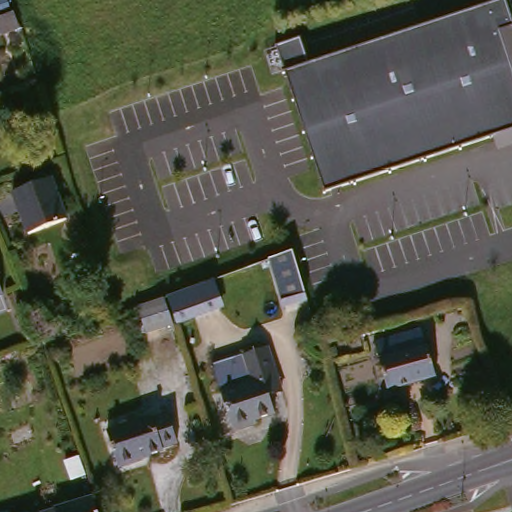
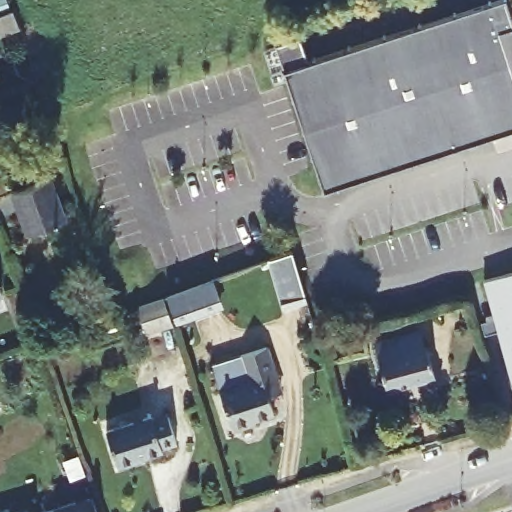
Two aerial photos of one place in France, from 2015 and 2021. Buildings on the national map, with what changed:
unchanged [(321,190),(279,51),(277,40),(291,36),(294,47),(299,62),(444,19),(508,1),(512,16),(512,31),(502,34),(512,70),(512,134),(461,149),(321,190)]
unchanged [(56,181),(67,211),(29,225),(20,193),(56,181)]
unchanged [(289,254),(302,288),(305,301),(283,308),(268,260),(289,254)]
new [(512,394),(484,282),(512,274),(512,394)]
unchanged [(172,297),(210,285),(218,311),(173,326),(164,299),(172,297)]
unchanged [(3,294),(0,295),(0,287),(3,294)]
unchanged [(169,327),(143,335),(135,309),(161,300),(169,327)]
unchanged [(377,342),(423,327),(436,373),(390,388),(377,342)]
unchanged [(211,361),(267,343),(272,359),(279,381),(266,385),(274,410),(249,418),(251,424),(233,430),(216,378),(211,361)]
unchanged [(156,452),(120,466),(109,429),(153,414),(155,418),(173,412),(184,445),(158,455),(156,452)]
unchanged [(95,497),(100,512),(51,512),(95,497)]

